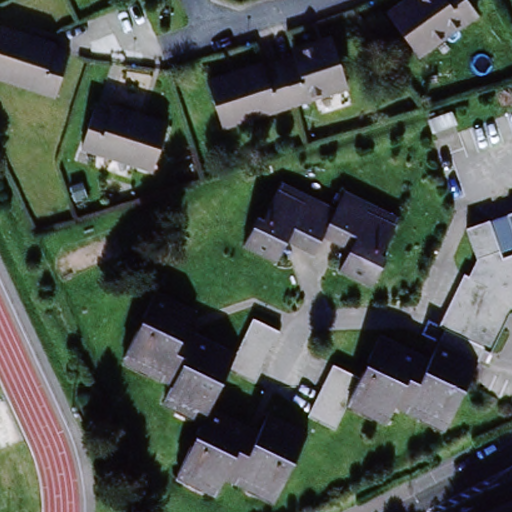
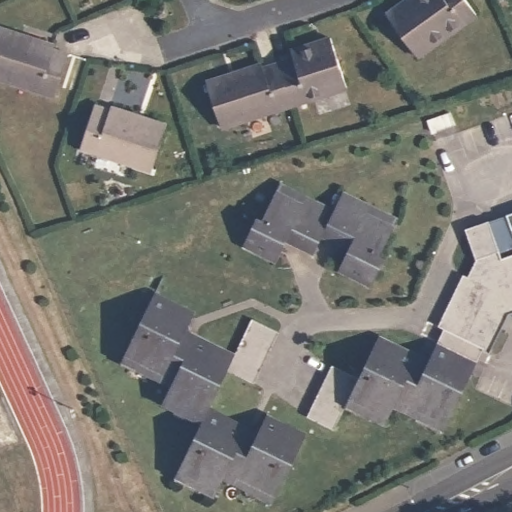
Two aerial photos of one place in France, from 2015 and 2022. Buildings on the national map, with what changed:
unchanged [(414,14),(408,5),(416,0),(466,0),(486,28),(471,38),(467,32),(420,64),(394,29),(414,14)]
unchanged [(44,99),(0,85),(0,44),(4,33),(59,51),(58,54),(73,60),(58,104),(44,99)]
unchanged [(265,74),(266,79),(281,74),(280,73),(300,66),(295,53),(333,41),(348,87),(310,99),(313,106),(293,113),(278,117),(226,134),(211,94),(265,74)]
unchanged [(168,125),(153,174),(96,155),(80,150),(94,108),(110,114),(112,107),(168,125)]
unchanged [(343,210),(351,192),(405,217),(392,246),(395,249),(378,284),(349,269),(358,254),(331,239),(321,256),(291,243),(280,262),(249,246),(263,217),(268,220),(285,184),(343,210)]
unchanged [(512,218),(512,222),(511,219),(512,218)]
unchanged [(473,378),(447,431),(399,407),(391,421),(352,406),(363,384),(384,343),(432,364),(449,333),(442,328),(468,278),(474,280),(481,264),(469,233),(491,224),(503,257),(504,259),(512,256),(512,319),(482,382),(473,378)]
unchanged [(230,371),(211,408),(261,433),(269,418),(309,436),(279,501),(228,478),(218,498),(177,478),(199,431),(166,414),(176,394),(127,369),(163,295),(196,310),(189,330),(236,353),(230,371)]
unchanged [(253,318),(279,329),(254,383),(230,371),(236,353),(253,318)]
unchanged [(338,434),(313,422),(337,370),(363,384),(352,406),(338,434)]

